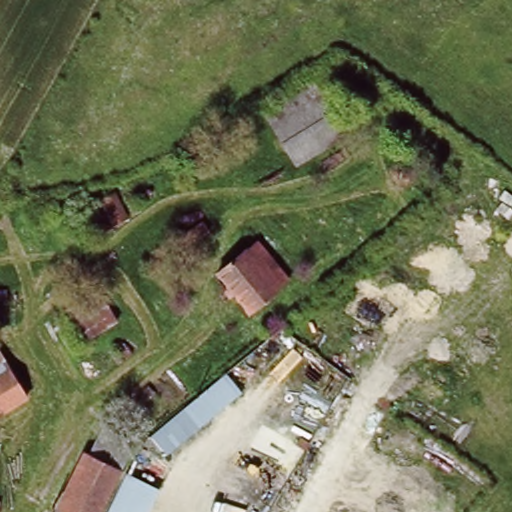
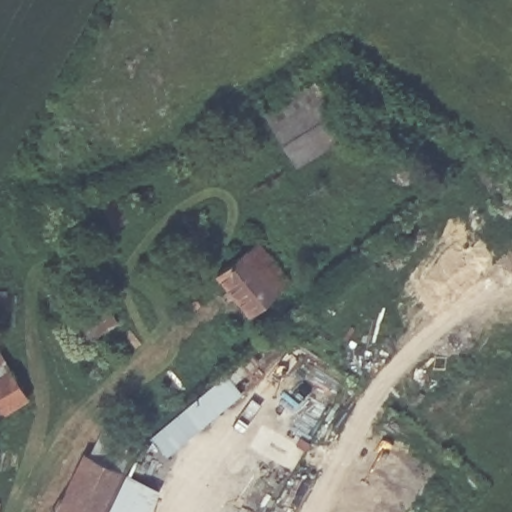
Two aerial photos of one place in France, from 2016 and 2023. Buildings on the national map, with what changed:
unchanged [(261,116),(314,81),(348,138),(296,172),(261,116)]
unchanged [(256,246),(286,282),(248,311),(218,275),(256,246)]
unchanged [(0,416),(0,350),(30,398),(0,416)]
unchanged [(240,392),(165,453),(151,435),(226,374),(240,392)]
unchanged [(119,468),(97,512),(54,512),(84,451),(119,468)]
unchanged [(144,512),(108,512),(125,476),(154,490),(144,512)]

